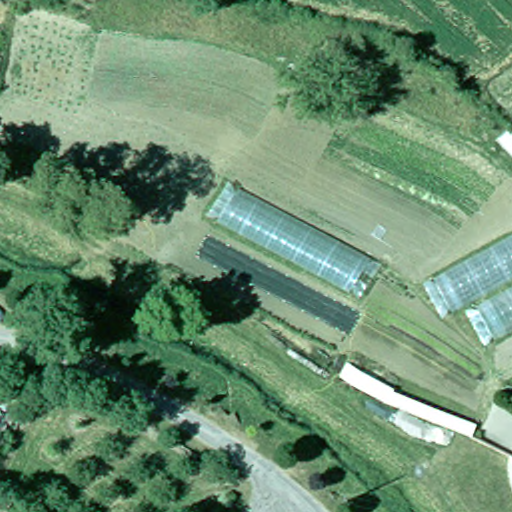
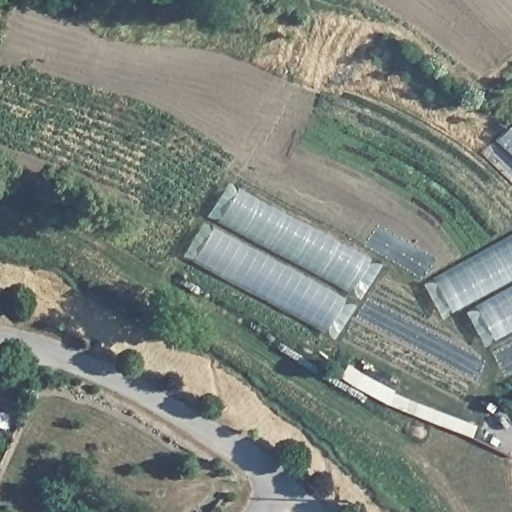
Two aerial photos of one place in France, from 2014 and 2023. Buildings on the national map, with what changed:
unchanged [(381,265),(360,298),(210,217),(227,184),(381,265)]
new [(192,261),(211,226),(345,298),(325,332),(192,261)]
unchanged [(485,347),(462,309),(450,317),(430,281),(512,235),(512,332),(485,347)]

